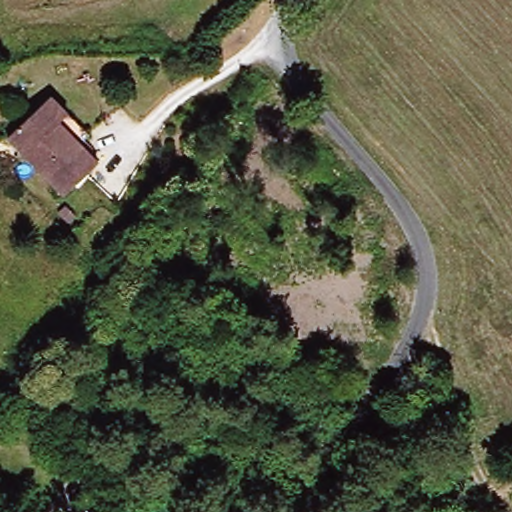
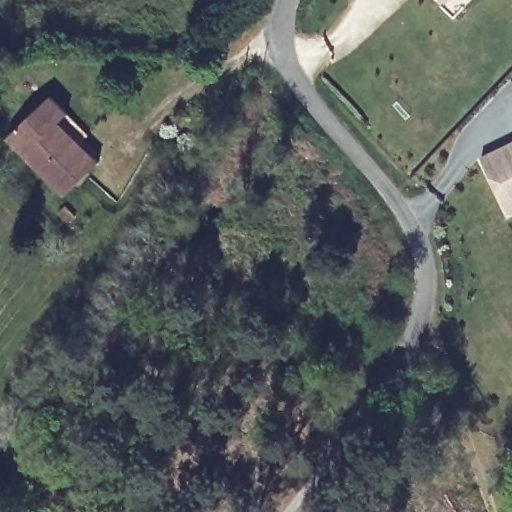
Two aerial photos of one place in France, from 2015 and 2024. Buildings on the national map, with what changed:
new [(443,0),(448,0),(445,2),(443,0)]
unchanged [(50,97),(86,132),(79,141),(96,159),(65,191),(12,137),(50,97)]
new [(479,157),(512,140),(512,211),(507,213),(479,157)]

